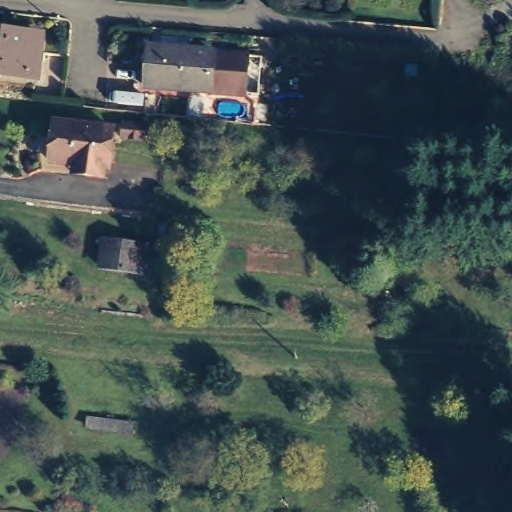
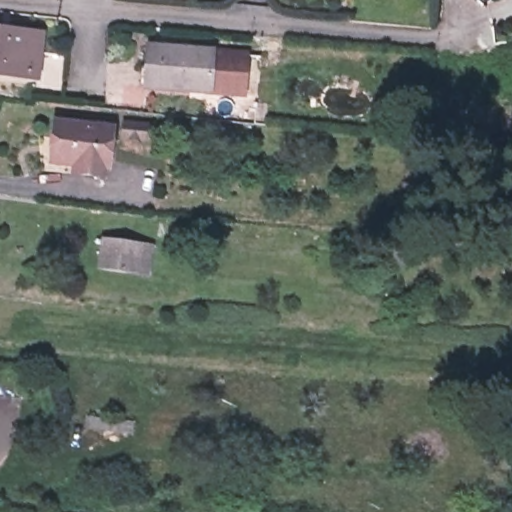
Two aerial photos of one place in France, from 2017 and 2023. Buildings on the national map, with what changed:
unchanged [(0,67),(0,26),(42,30),(38,70),(0,67)]
unchanged [(247,95),(236,94),(211,92),(148,86),(153,47),(215,52),(239,55),(251,56),(247,95)]
unchanged [(294,66),(274,64),(275,55),(295,57),(294,66)]
unchanged [(48,155),(52,117),(110,122),(107,161),(103,160),(100,170),(83,168),(48,164),(48,155)]
unchanged [(153,142),(121,139),(123,117),(152,118),(153,142)]
unchanged [(104,268),(105,250),(106,242),(144,245),(143,254),(141,272),(104,268)]

